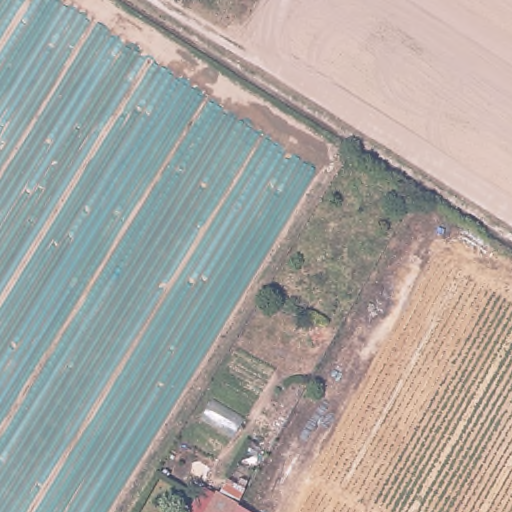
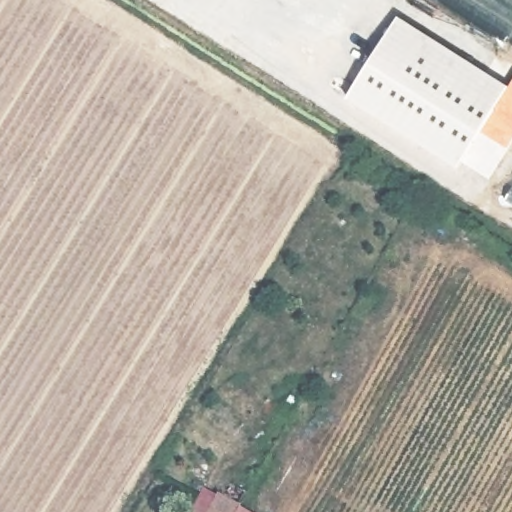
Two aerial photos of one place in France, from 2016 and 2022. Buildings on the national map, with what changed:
new [(457,170),(345,99),(398,16),(509,87),(457,170)]
unchanged [(245,503),(262,512),(212,512),(224,491),(245,503)]

